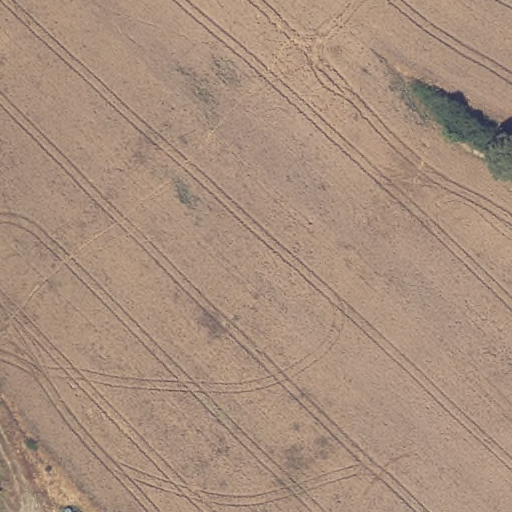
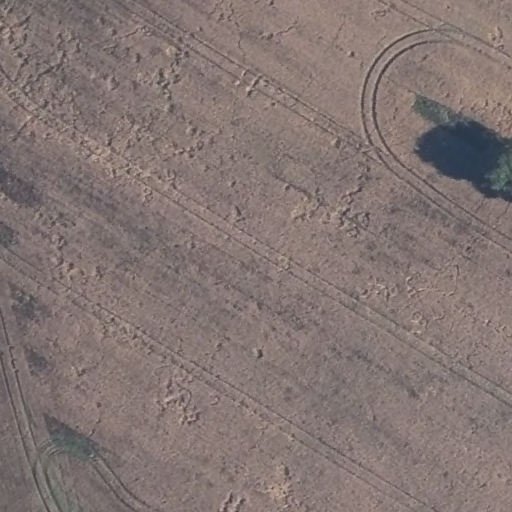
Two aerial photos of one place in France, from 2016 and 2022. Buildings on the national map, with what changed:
[]

